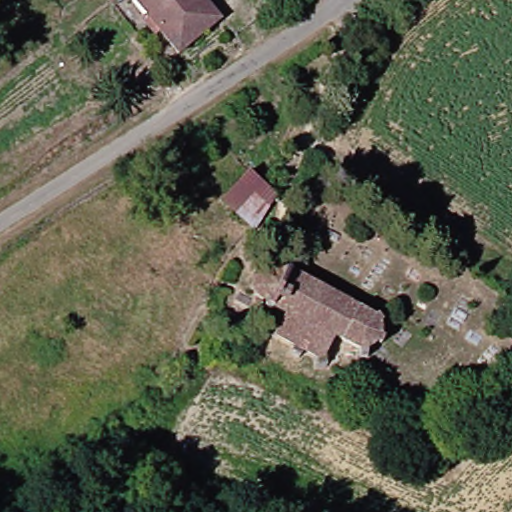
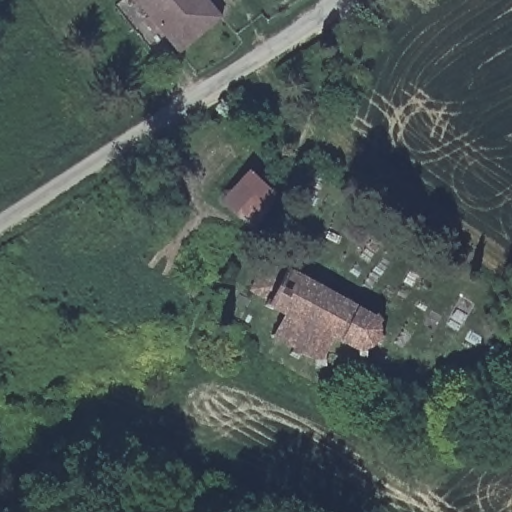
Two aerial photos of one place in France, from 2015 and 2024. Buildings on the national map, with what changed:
unchanged [(181,56),(136,0),(205,0),(224,22),(181,56)]
unchanged [(228,203),(251,173),(279,195),(256,225),(228,203)]
unchanged [(293,263),(381,319),(389,317),(392,329),(382,330),(387,348),(382,354),(369,348),(360,363),(329,357),(329,369),(316,368),(317,356),(305,349),(299,356),(291,350),(295,343),(276,330),(289,310),(269,300),(293,263)]

